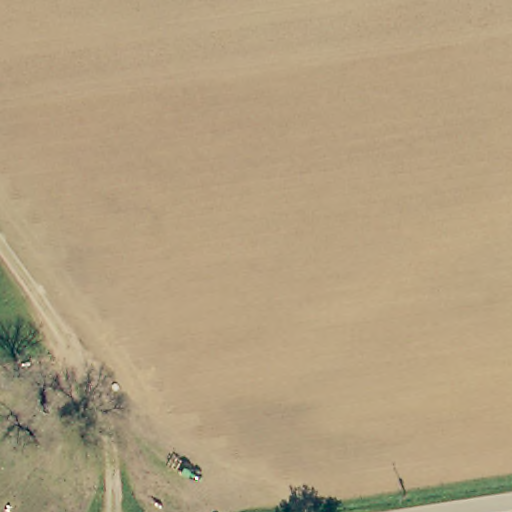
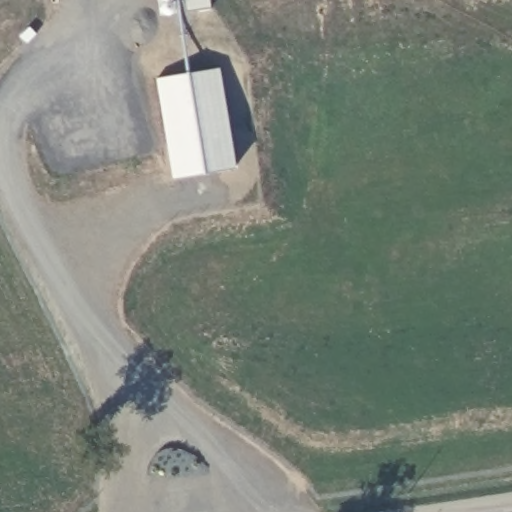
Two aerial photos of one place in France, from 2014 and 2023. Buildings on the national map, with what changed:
new [(184,0),(209,0),(210,8),(186,12),(184,0)]
new [(220,67),(238,168),(174,180),(156,78),(220,67)]

